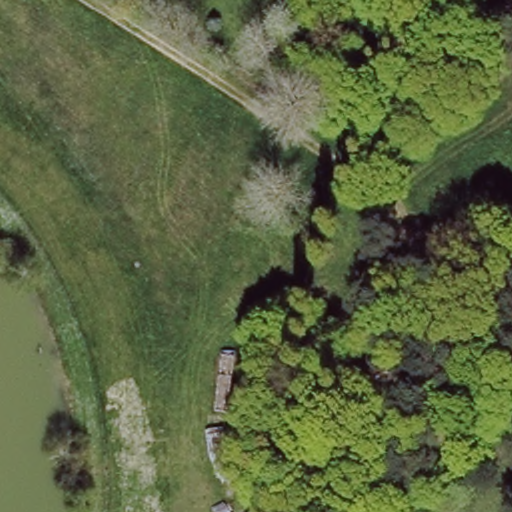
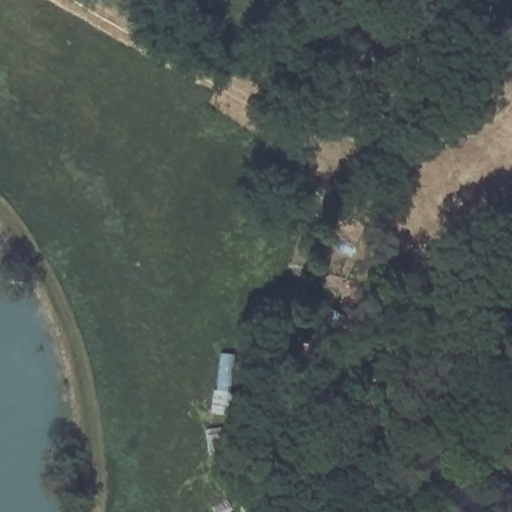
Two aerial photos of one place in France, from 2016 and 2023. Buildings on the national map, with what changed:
unchanged [(512,200),(485,189),(495,161),(512,168),(512,200)]

